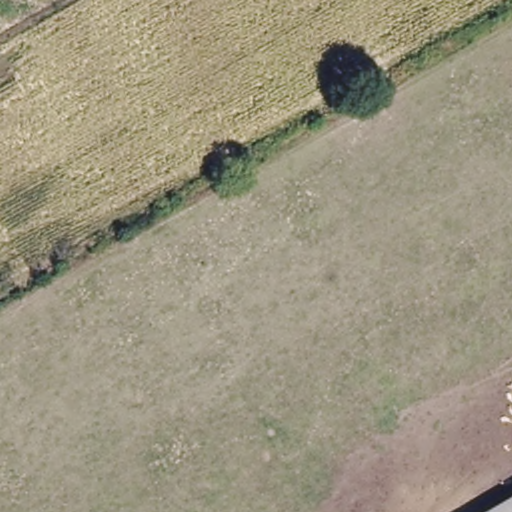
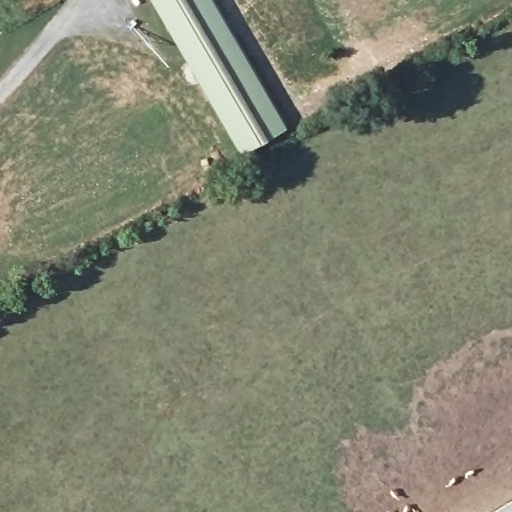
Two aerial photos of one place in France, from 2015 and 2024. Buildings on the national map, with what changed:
new [(240,155),(151,0),(211,0),(284,128),(240,155)]
unchanged [(512,500),(512,512),(492,512),(512,500)]

